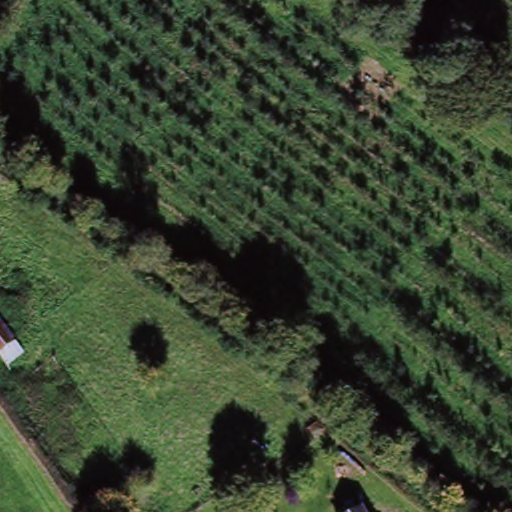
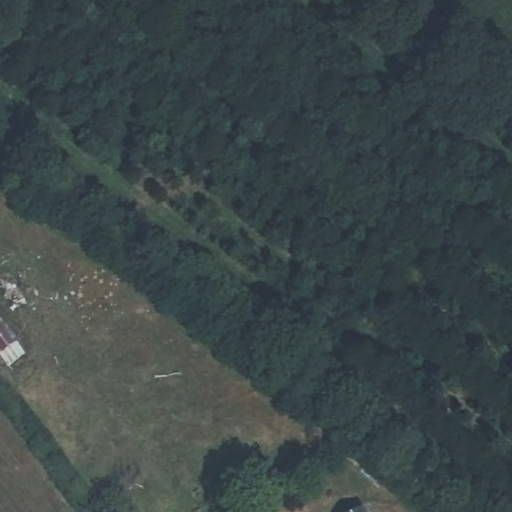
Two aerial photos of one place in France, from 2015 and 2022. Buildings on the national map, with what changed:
unchanged [(0,349),(0,321),(13,338),(0,349)]

